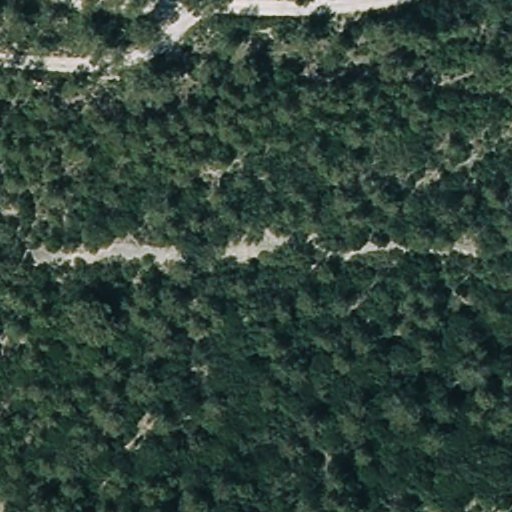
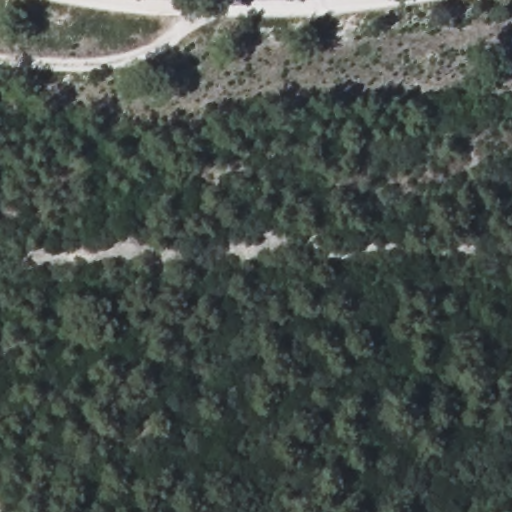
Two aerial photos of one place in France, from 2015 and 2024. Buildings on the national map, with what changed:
[]

